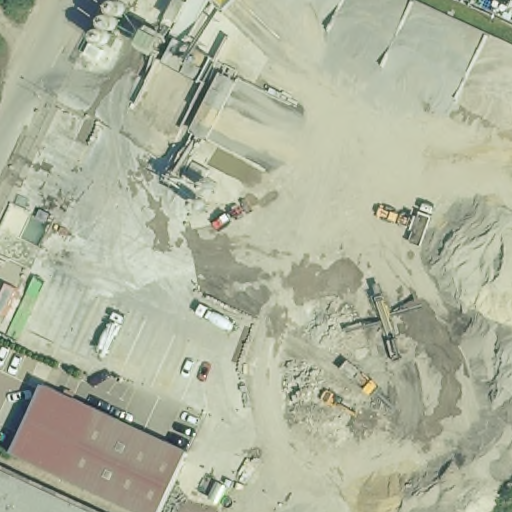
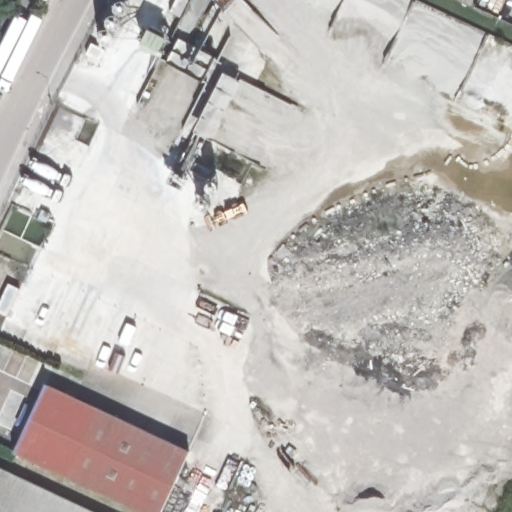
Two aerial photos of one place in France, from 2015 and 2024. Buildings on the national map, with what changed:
unchanged [(191,458),(165,512),(131,512),(13,456),(45,389),(191,458)]
unchanged [(0,512),(0,473),(83,512),(0,512)]

